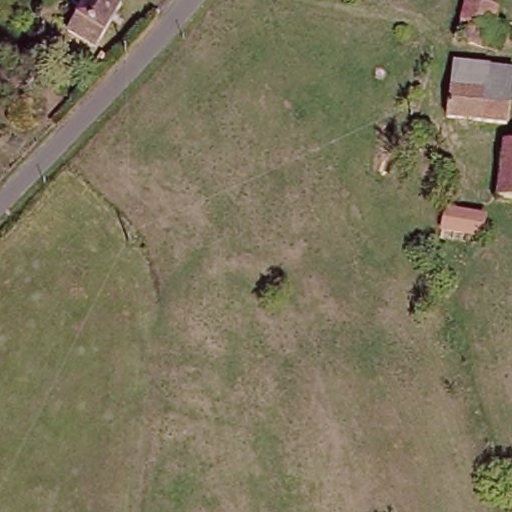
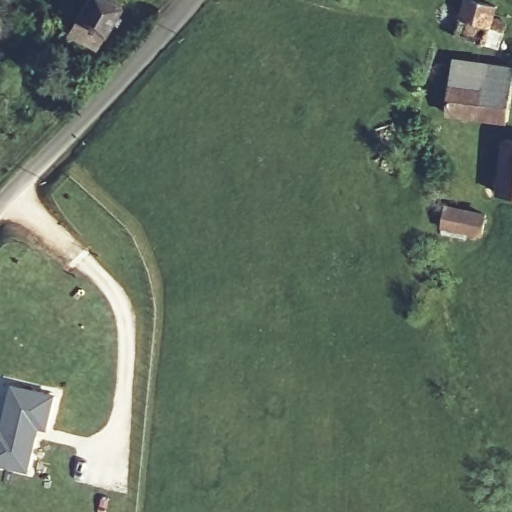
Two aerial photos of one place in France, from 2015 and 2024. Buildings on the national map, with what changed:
unchanged [(95,42),(67,22),(83,0),(114,0),(120,5),(95,42)]
unchanged [(456,0),(493,0),(492,17),(504,21),(502,37),(452,32),(454,8),(456,0)]
unchanged [(455,60),(512,65),(512,75),(508,116),(451,110),(455,60)]
unchanged [(504,134),(512,134),(512,194),(499,193),(504,134)]
demolished [(442,175),(447,141),(460,142),(456,177),(442,175)]
unchanged [(480,235),(446,232),(449,211),(482,215),(480,235)]
new [(40,427),(30,471),(0,465),(0,426),(5,427),(15,383),(58,393),(48,430),(40,427)]

